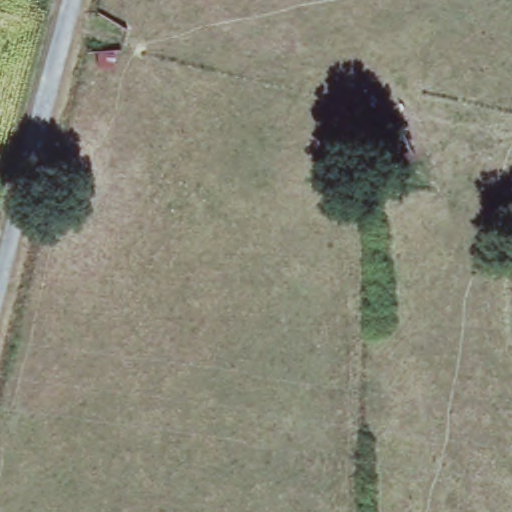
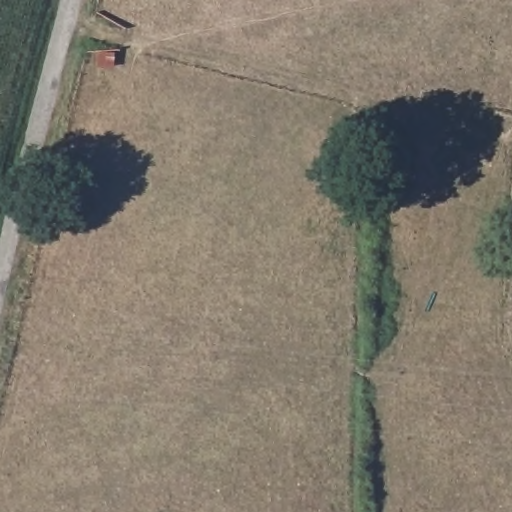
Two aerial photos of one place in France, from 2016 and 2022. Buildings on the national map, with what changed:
unchanged [(120,66),(99,66),(100,50),(119,50),(120,66)]
unchanged [(379,115),(387,139),(373,142),(367,119),(379,115)]

